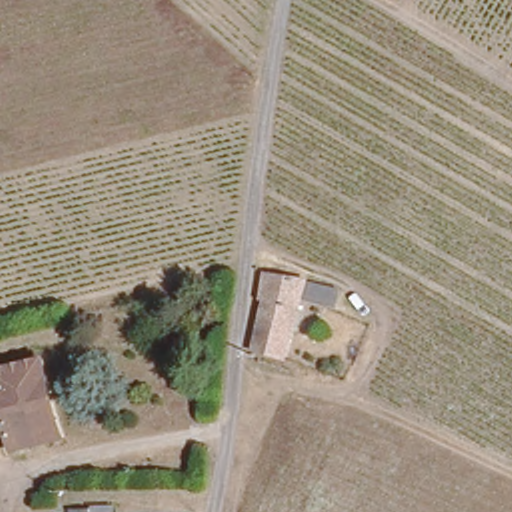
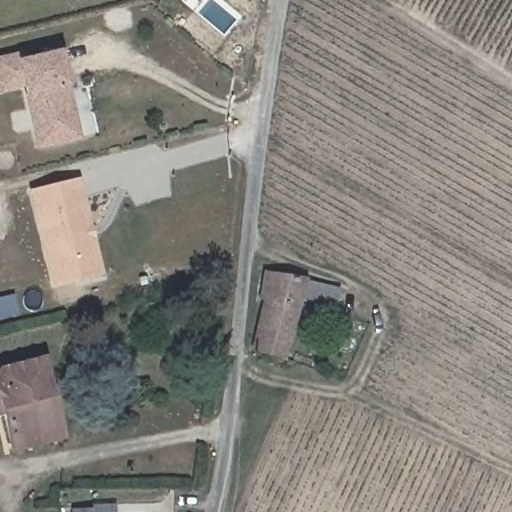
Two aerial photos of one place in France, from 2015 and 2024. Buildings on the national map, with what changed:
new [(23,51),(26,56),(60,49),(69,86),(80,139),(38,148),(25,97),(22,88),(0,93),(0,56),(23,51)]
new [(83,231),(85,239),(91,238),(95,256),(95,257),(74,262),(78,279),(56,284),(33,193),(77,183),(88,229),(83,231)]
unchanged [(261,299),(266,272),(341,288),(337,304),(301,296),(299,306),(265,300),(261,299)]
unchanged [(299,306),(284,357),(252,349),(265,300),(299,306)]
unchanged [(14,448),(12,441),(4,411),(0,412),(0,365),(42,353),(49,377),(64,434),(14,448)]
unchanged [(71,508),(89,507),(89,512),(71,512),(71,508)]

